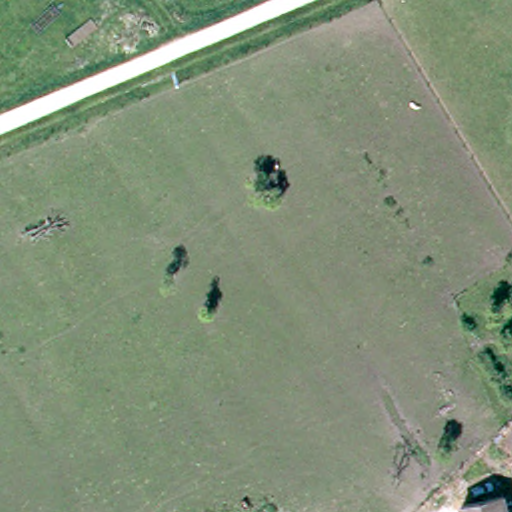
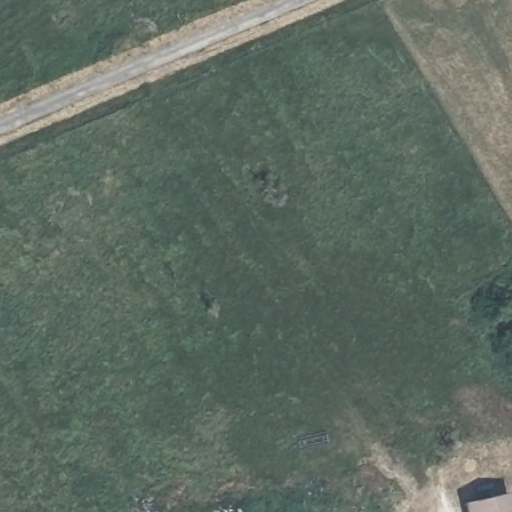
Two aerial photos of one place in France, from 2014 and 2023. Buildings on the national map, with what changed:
unchanged [(506,492),(510,512),(465,512),(463,502),(506,492)]

